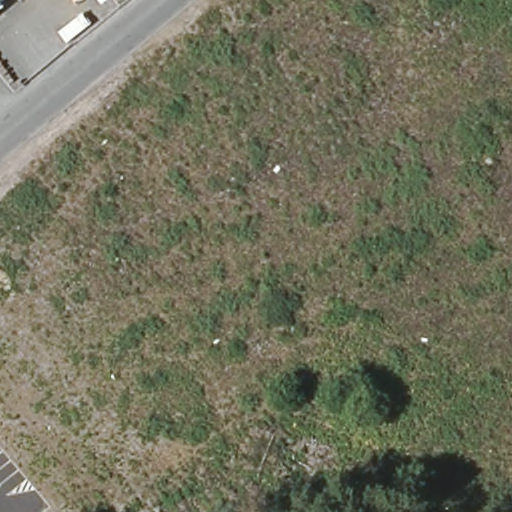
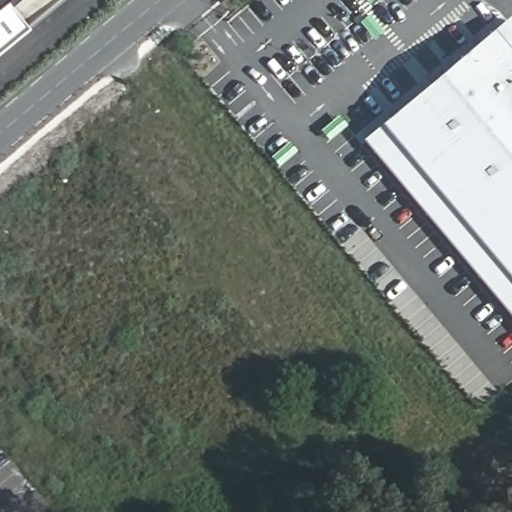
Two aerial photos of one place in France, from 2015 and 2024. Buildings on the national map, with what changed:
unchanged [(3,0),(0,2),(0,0),(3,0)]
new [(3,0),(6,0),(29,27),(0,51),(0,2),(3,0)]
new [(512,324),(355,137),(505,16),(512,25),(512,324)]

